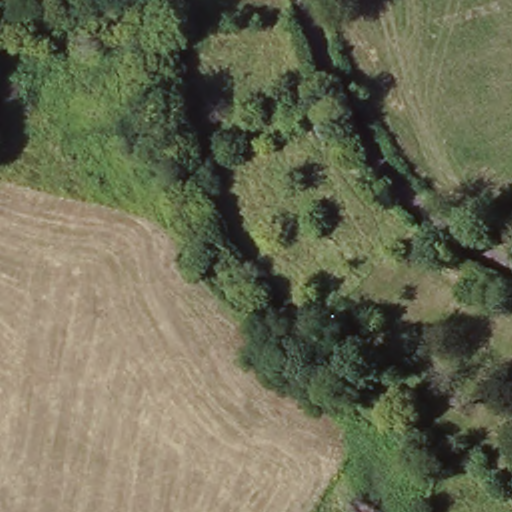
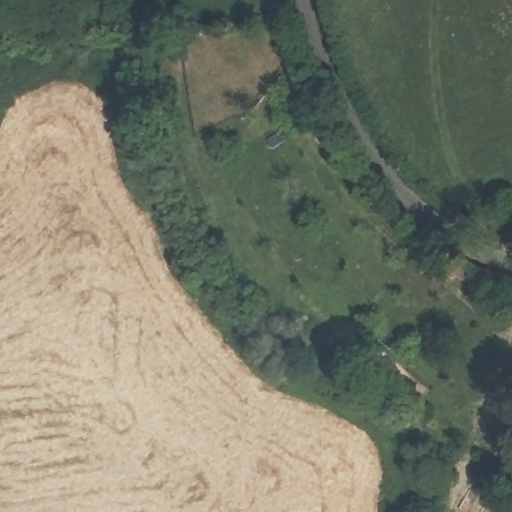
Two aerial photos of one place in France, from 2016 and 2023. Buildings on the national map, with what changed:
unchanged [(465,261),(461,270),(442,258),(447,250),(465,261)]

